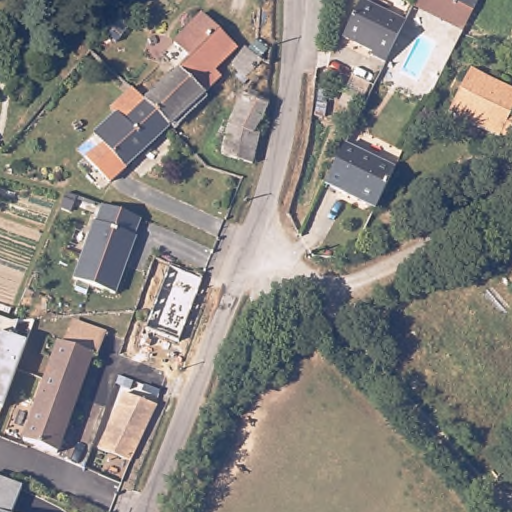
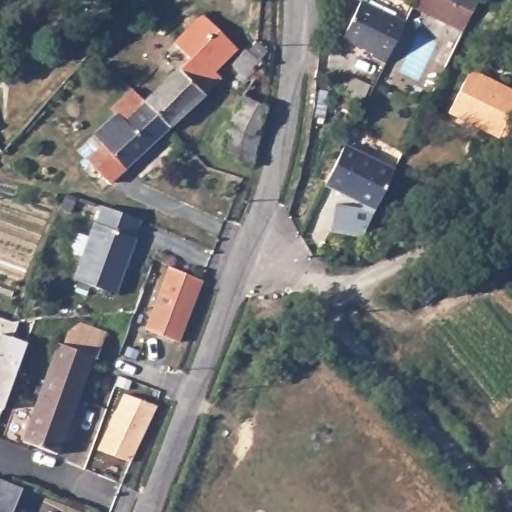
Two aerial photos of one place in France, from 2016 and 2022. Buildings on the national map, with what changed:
unchanged [(370,55),(372,51),(343,37),(361,0),(404,22),(385,62),(370,55)]
unchanged [(416,0),(445,0),(471,14),(462,31),(413,5),(416,0)]
unchanged [(475,0),(470,11),(449,0),(475,0)]
unchanged [(188,57),(173,41),(202,13),(238,50),(215,72),(221,77),(169,125),(143,101),(143,99),(188,57)]
unchanged [(263,65),(258,71),(248,82),(228,66),(243,49),(263,65)]
unchanged [(512,113),(512,140),(501,136),(500,138),(449,114),(470,70),(512,89),(512,113)]
unchanged [(225,130),(243,95),(251,85),(254,81),(270,80),(268,107),(255,137),(258,137),(251,163),(220,154),(225,130)]
unchanged [(113,113),(109,109),(130,87),(143,99),(143,101),(169,125),(108,181),(86,157),(101,143),(93,133),(113,113)]
unchanged [(20,116),(25,111),(30,115),(25,121),(20,116)]
unchanged [(393,170),(387,182),(373,210),(324,185),(327,178),(343,145),(393,170)]
unchanged [(130,216),(138,220),(131,237),(133,238),(110,293),(70,277),(92,221),(94,222),(101,205),(130,216)]
unchanged [(202,279),(180,340),(143,327),(168,265),(202,279)]
unchanged [(19,322),(14,337),(26,341),(2,406),(0,406),(0,316),(19,322)]
unchanged [(101,356),(96,355),(62,451),(26,438),(62,340),(62,336),(63,335),(67,335),(71,336),(77,320),(110,332),(101,356)]
unchanged [(99,446),(123,393),(154,403),(129,460),(99,446)]
unchanged [(10,512),(0,512),(0,478),(20,486),(10,512)]

